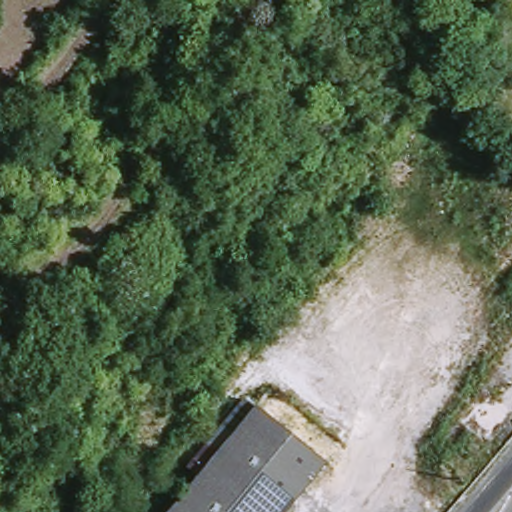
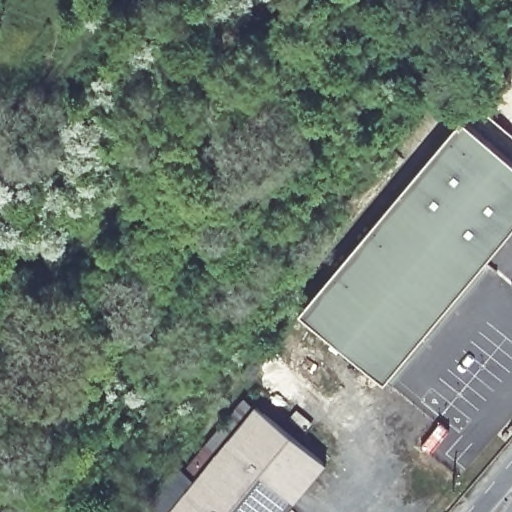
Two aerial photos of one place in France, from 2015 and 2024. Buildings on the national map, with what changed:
new [(384,383),(298,313),(461,120),(512,161),(512,228),(384,383)]
demolished [(495,373),(512,386),(512,411),(484,446),(468,433),(454,450),(441,440),(455,423),(495,373)]
unchanged [(329,472),(294,512),(170,512),(257,410),(264,415),(329,472)]

